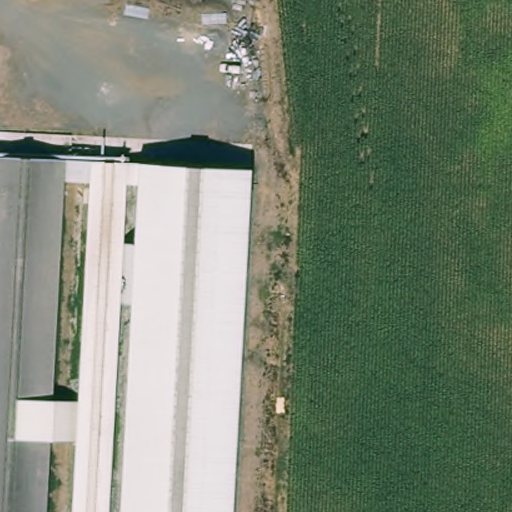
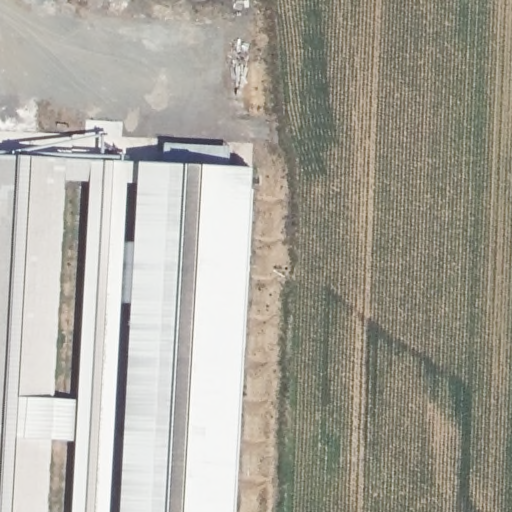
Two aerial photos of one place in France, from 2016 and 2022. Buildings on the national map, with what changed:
unchanged [(55,512),(0,512),(0,155),(72,159),(55,512)]
unchanged [(238,512),(83,512),(95,159),(250,164),(238,512)]

